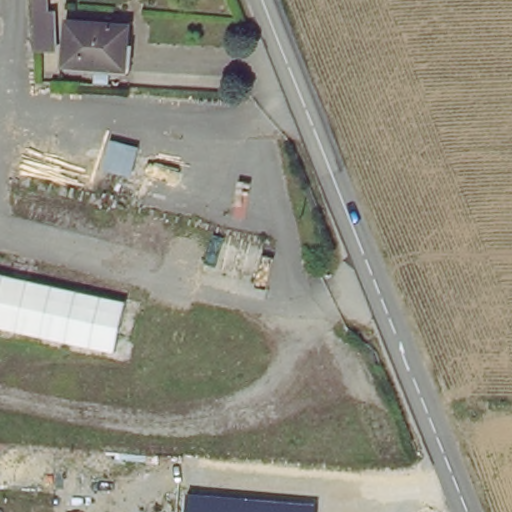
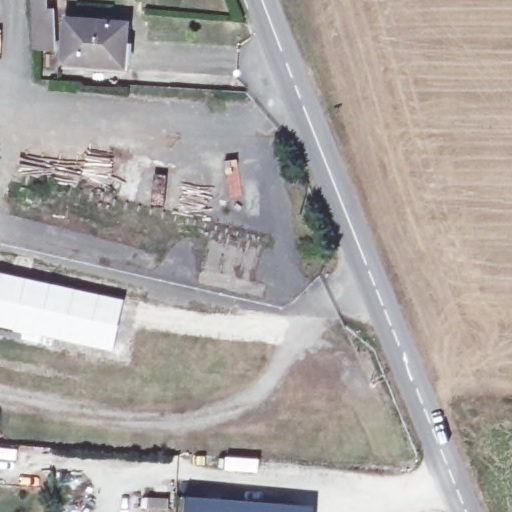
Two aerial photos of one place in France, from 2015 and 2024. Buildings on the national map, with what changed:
unchanged [(34,53),(31,15),(30,0),(42,0),(43,10),(48,10),(53,51),(46,52),(34,53)]
unchanged [(129,32),(126,75),(68,70),(70,28),(129,32)]
unchanged [(125,369),(0,340),(0,275),(138,308),(125,369)]
unchanged [(317,507),(316,512),(185,512),(187,496),(317,507)]

